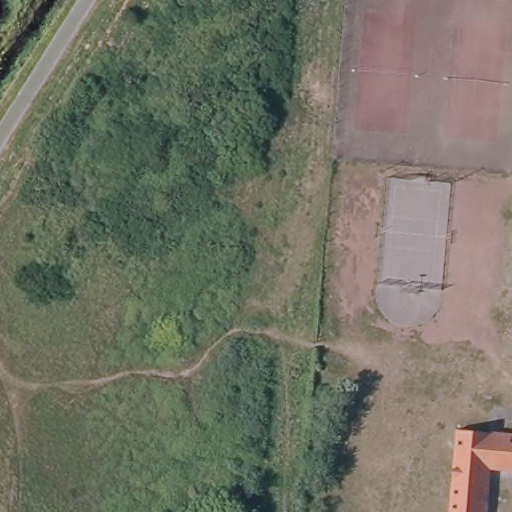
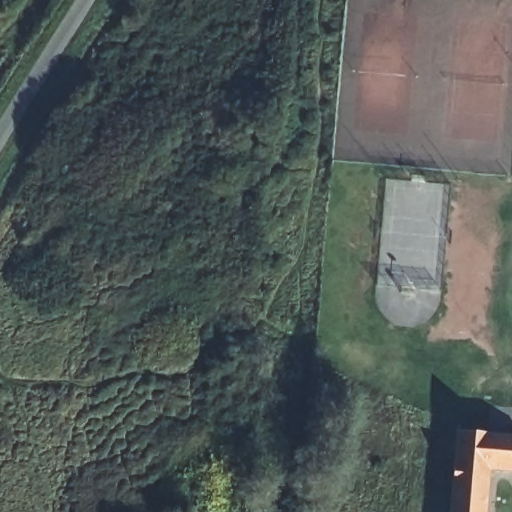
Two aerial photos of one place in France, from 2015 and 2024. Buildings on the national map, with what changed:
unchanged [(460,440),(512,444),(512,477),(491,477),(488,512),(453,512),(460,440)]

